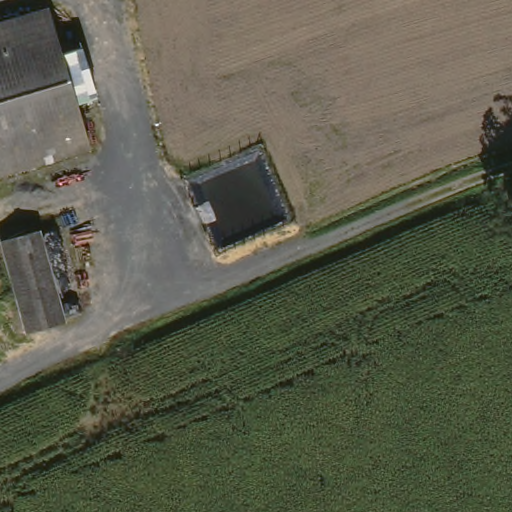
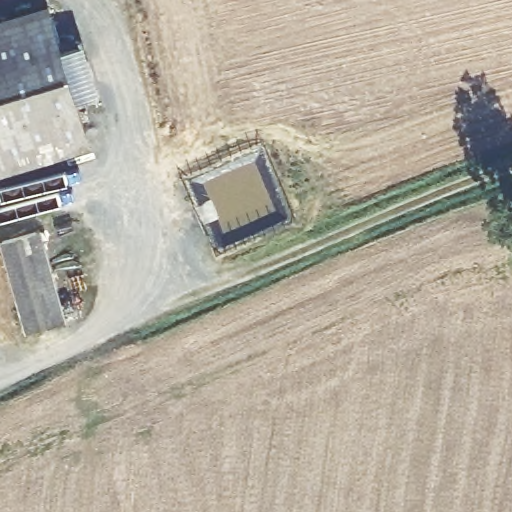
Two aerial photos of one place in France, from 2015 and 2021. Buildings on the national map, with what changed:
unchanged [(70,48),(85,97),(97,140),(57,152),(0,171),(0,17),(53,0),(55,0),(69,46),(70,48)]
unchanged [(90,39),(105,90),(85,97),(70,48),(69,46),(90,39)]
unchanged [(47,227),(73,318),(35,327),(7,236),(47,227)]

